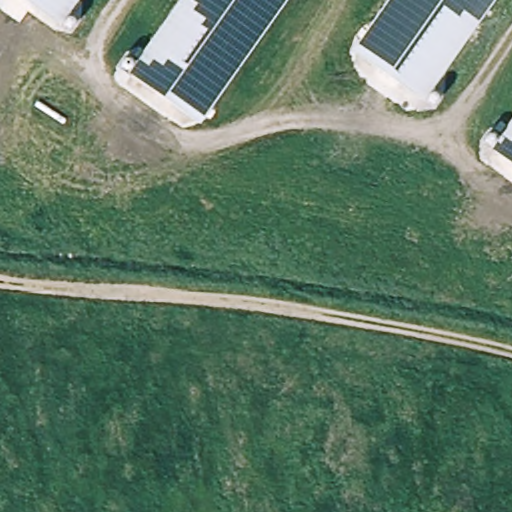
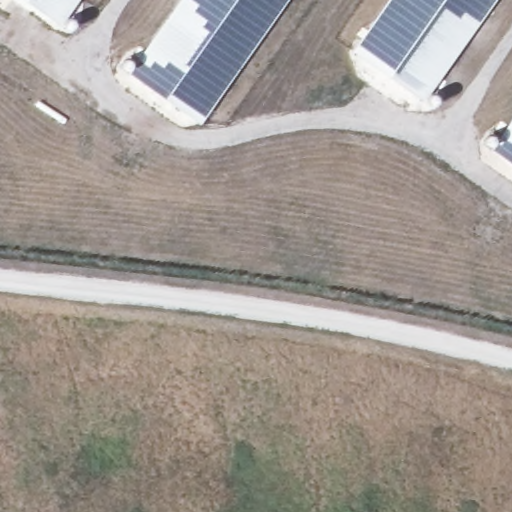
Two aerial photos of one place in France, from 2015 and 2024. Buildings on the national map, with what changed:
unchanged [(23,0),(74,0),(58,24),(23,0)]
unchanged [(133,69),(182,0),(283,0),(203,115),(133,69)]
unchanged [(359,49),(394,0),(491,0),(425,95),(359,49)]
unchanged [(512,128),(512,161),(497,150),(512,128)]

